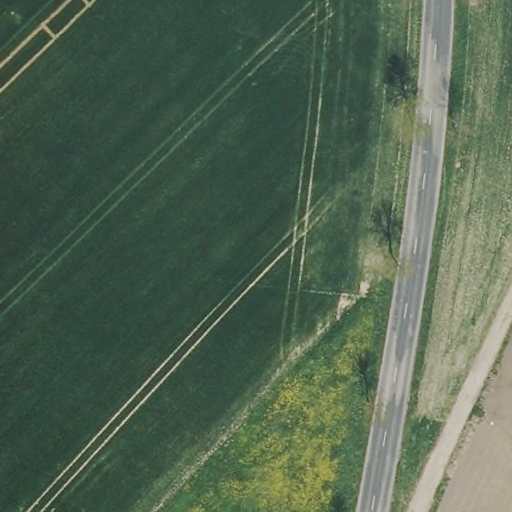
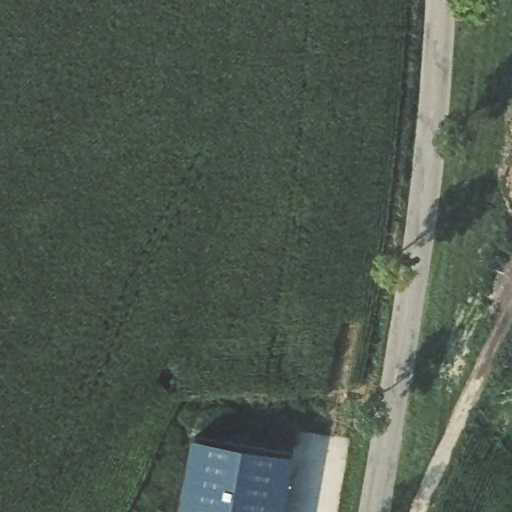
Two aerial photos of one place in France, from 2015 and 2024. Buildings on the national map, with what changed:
new [(192,437),(294,454),(283,512),(180,512),(192,437)]

